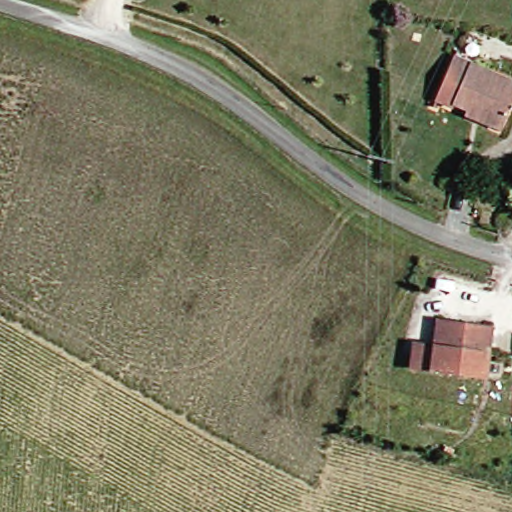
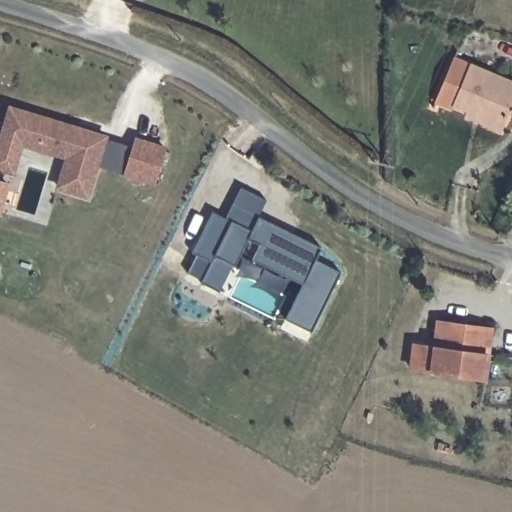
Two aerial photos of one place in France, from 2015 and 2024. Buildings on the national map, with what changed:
unchanged [(449,105),(447,110),(430,102),(448,58),(464,64),(512,85),(512,95),(496,131),(477,123),(461,116),(463,111),(449,105)]
new [(155,186),(123,177),(123,174),(99,167),(90,199),(54,188),(63,158),(22,147),(14,175),(0,171),(0,131),(8,104),(109,135),(108,140),(131,147),(134,136),(167,146),(155,186)]
new [(195,250),(213,213),(224,219),(240,188),(264,200),(256,218),(320,250),(315,260),(339,272),(309,330),(285,318),(303,284),(253,259),(262,239),(248,232),(219,289),(201,280),(212,259),(195,250)]
unchanged [(479,379),(405,368),(409,346),(429,349),(432,322),(486,329),(479,379)]

